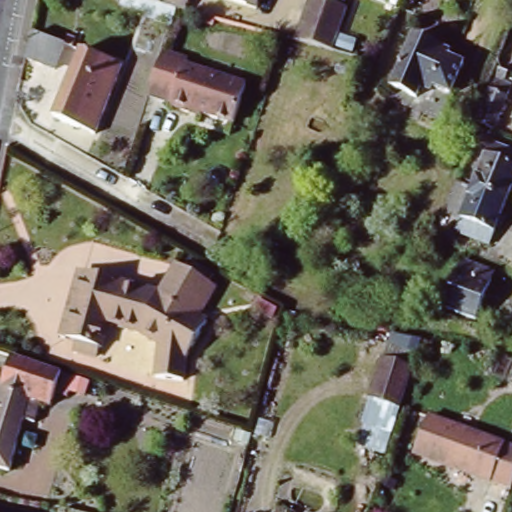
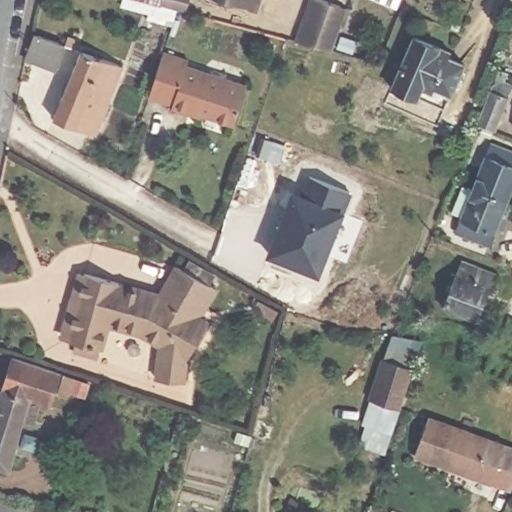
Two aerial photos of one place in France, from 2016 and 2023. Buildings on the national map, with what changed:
unchanged [(185,13),(177,11),(158,6),(135,0),(188,0),(188,1),(185,13)]
unchanged [(232,0),(252,0),(250,6),(232,0)]
unchanged [(293,45),(309,0),(313,0),(354,13),(339,57),(293,45)]
unchanged [(45,21),(75,33),(66,57),(36,46),(45,21)]
unchanged [(445,51),(442,57),(455,62),(443,94),(417,84),(412,99),(387,89),(408,37),(445,51)]
unchanged [(65,107),(91,39),(113,47),(112,49),(131,56),(127,69),(120,87),(117,95),(107,123),(87,116),(65,107)]
unchanged [(181,59),(179,65),(240,85),(227,124),(185,110),(184,114),(165,107),(167,104),(145,97),(159,52),(181,59)]
unchanged [(495,99),(512,105),(499,139),(482,132),(495,99)]
unchanged [(491,142),(512,151),(512,191),(509,199),(474,186),(491,142)]
new [(345,212),(320,277),(266,257),(291,189),(301,192),(306,175),(353,192),(345,212)]
unchanged [(455,231),(474,186),(509,199),(489,245),(455,231)]
unchanged [(494,277),(475,322),(443,309),(462,264),(494,277)]
unchanged [(70,352),(74,342),(69,340),(62,338),(75,303),(85,275),(157,298),(173,268),(212,291),(195,319),(204,325),(181,363),(179,378),(154,377),(155,346),(137,337),(105,327),(97,349),(93,348),(89,358),(70,352)]
unchanged [(421,338),(390,438),(359,427),(390,334),(421,338)]
unchanged [(2,392),(12,359),(61,376),(54,398),(51,409),(40,406),(35,424),(25,421),(9,473),(0,471),(0,391),(2,392)]
unchanged [(75,399),(80,385),(95,390),(90,404),(82,402),(75,399)]
unchanged [(416,456),(430,418),(512,449),(512,483),(510,490),(416,456)]
unchanged [(237,448),(240,438),(256,444),(253,453),(237,448)]

